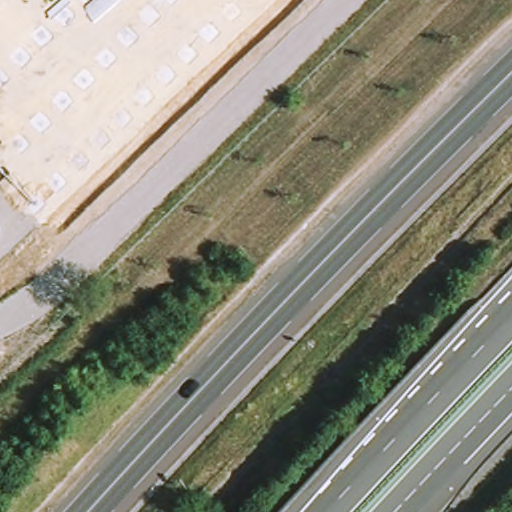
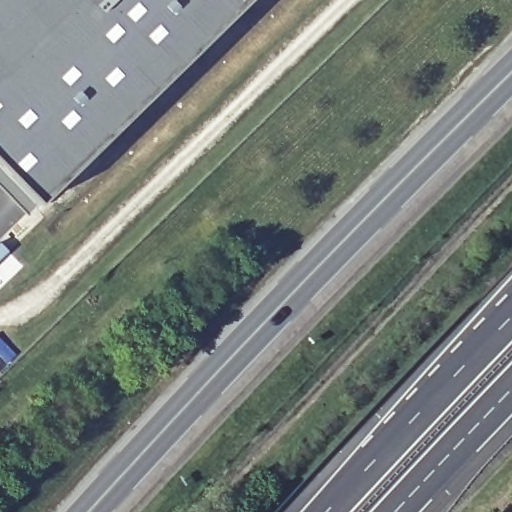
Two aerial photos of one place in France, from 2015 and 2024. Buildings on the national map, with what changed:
new [(0,171),(0,0),(246,0),(34,207),(0,171)]

